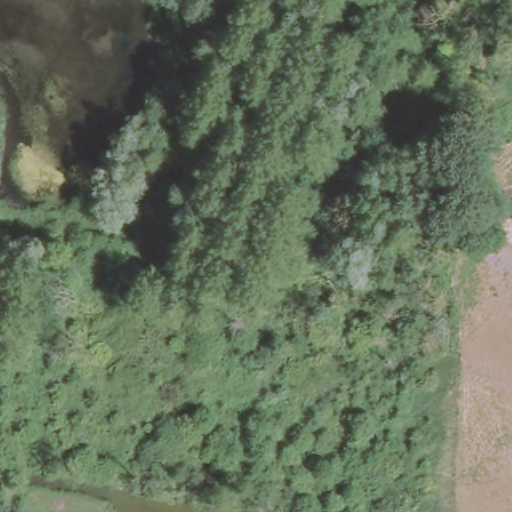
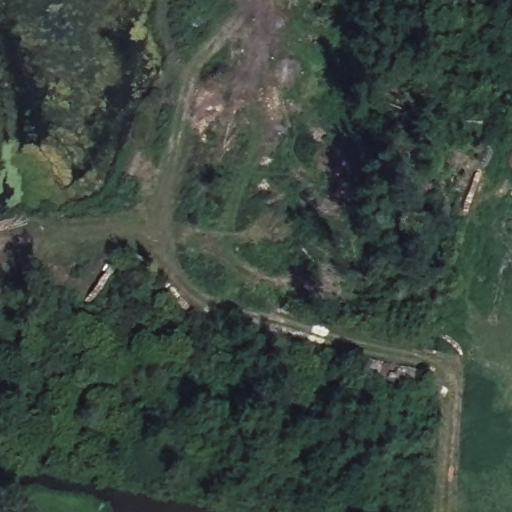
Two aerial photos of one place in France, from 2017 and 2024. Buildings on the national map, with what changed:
[]

